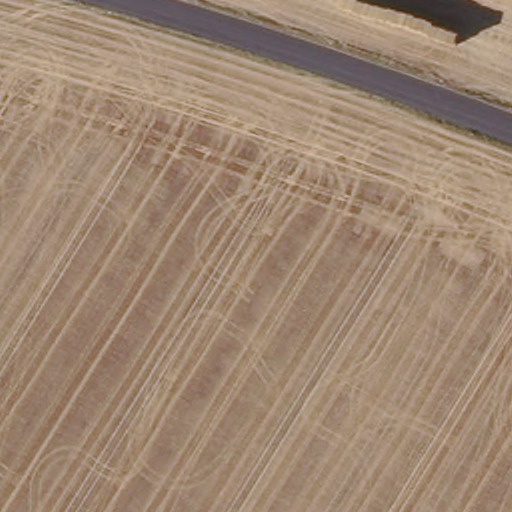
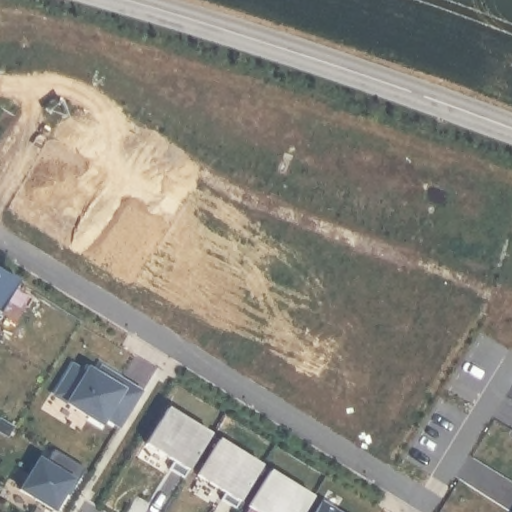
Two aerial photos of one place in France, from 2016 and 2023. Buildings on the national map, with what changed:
new [(0,308),(0,271),(17,281),(0,308)]
new [(71,365),(85,372),(87,368),(125,392),(130,385),(142,392),(117,430),(106,422),(101,429),(52,399),(71,365)]
new [(207,436),(181,478),(167,469),(172,462),(144,445),(166,410),(207,436)]
new [(258,467),(233,510),(218,501),(223,493),(195,477),(216,442),(258,467)]
new [(36,460),(44,464),(52,451),(84,469),(67,495),(62,492),(52,510),(17,489),(36,460)]
new [(310,498),(302,512),(254,512),(247,508),(267,473),(310,498)]
new [(332,512),(312,512),(317,503),(332,512)]

